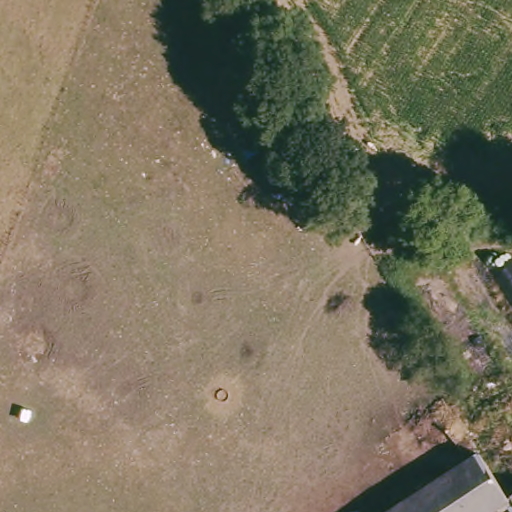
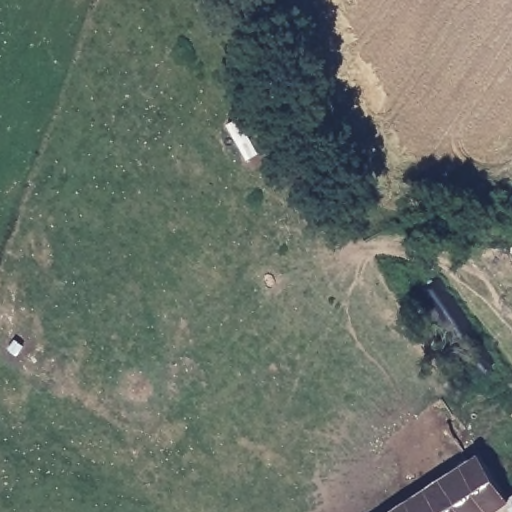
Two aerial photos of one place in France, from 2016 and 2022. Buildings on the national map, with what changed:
unchanged [(502,493),(473,512),(381,512),(474,451),(502,493)]
unchanged [(503,495),(512,488),(512,508),(503,495)]

